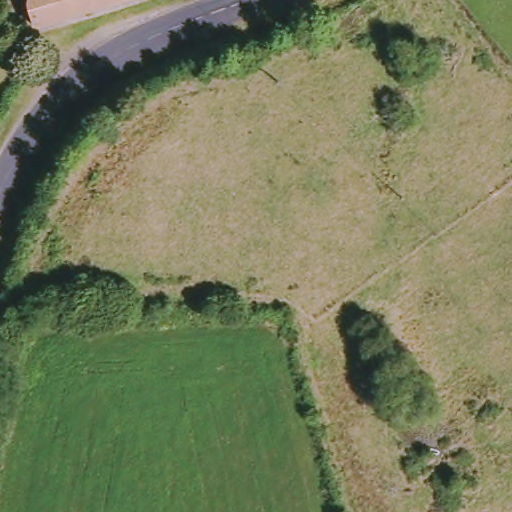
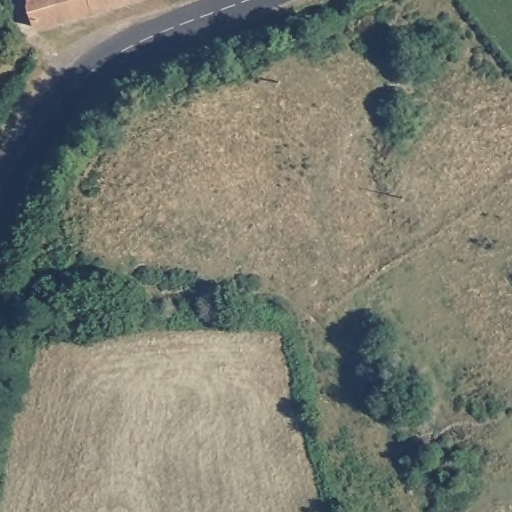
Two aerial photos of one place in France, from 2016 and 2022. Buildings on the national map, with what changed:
unchanged [(31,13),(36,2),(37,0),(151,0),(36,33),(31,13)]

